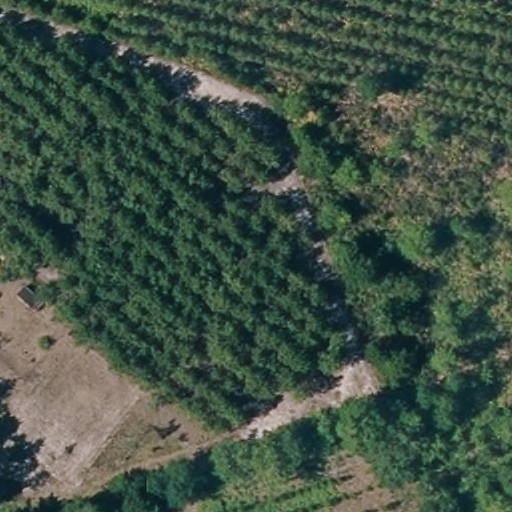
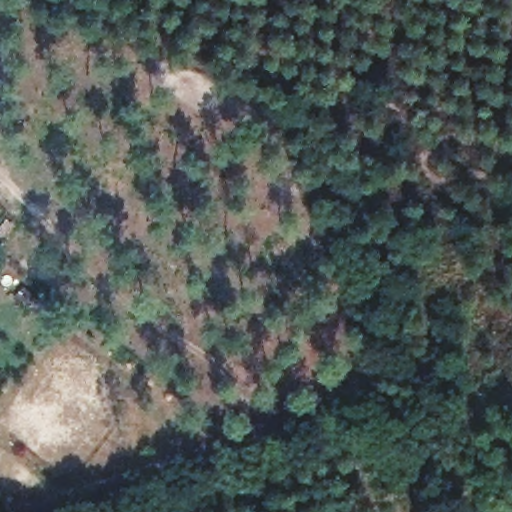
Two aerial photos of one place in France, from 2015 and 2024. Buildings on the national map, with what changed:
[]

